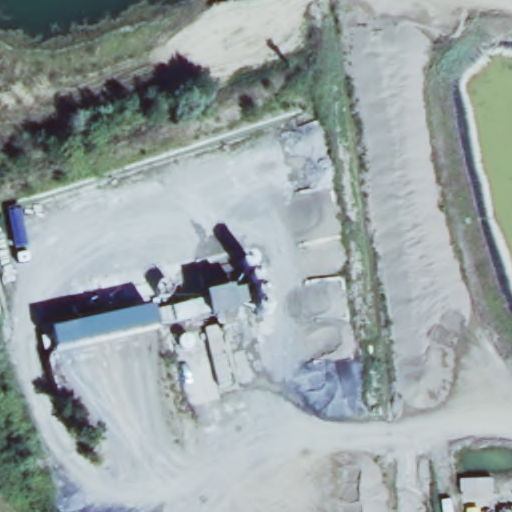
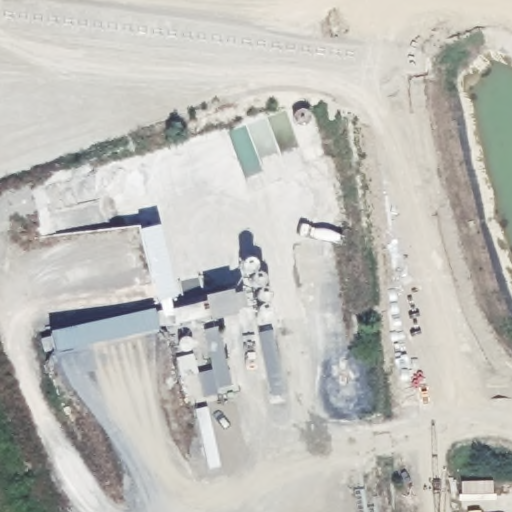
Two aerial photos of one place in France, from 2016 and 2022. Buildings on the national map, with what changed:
unchanged [(223,293),(247,288),(244,273),(261,269),(271,318),(248,323),(245,311),(206,318),(202,297),(223,293)]
unchanged [(101,319),(150,311),(153,331),(50,348),(47,328),(101,319)]

